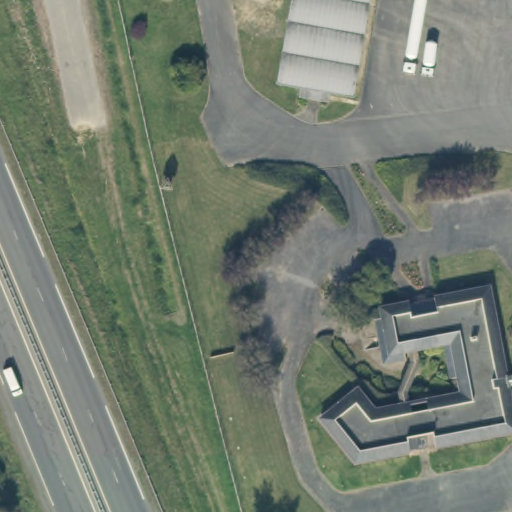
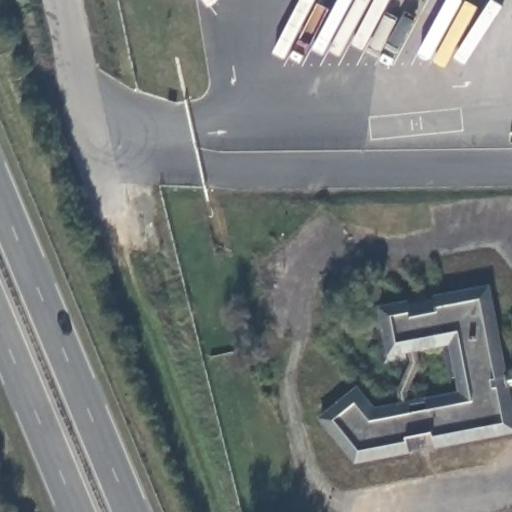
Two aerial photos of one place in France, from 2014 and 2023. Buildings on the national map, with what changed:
demolished [(280,84),(295,0),(367,0),(350,96),(280,84)]
unchanged [(411,363),(409,352),(405,353),(407,361),(383,366),(374,321),(383,319),(382,309),(410,304),(436,299),(490,288),(506,375),(512,374),(512,387),(509,388),(512,406),(512,432),(437,446),(436,445),(411,450),(412,451),(357,461),(322,419),(358,390),(375,411),(401,406),(398,392),(411,363)]

